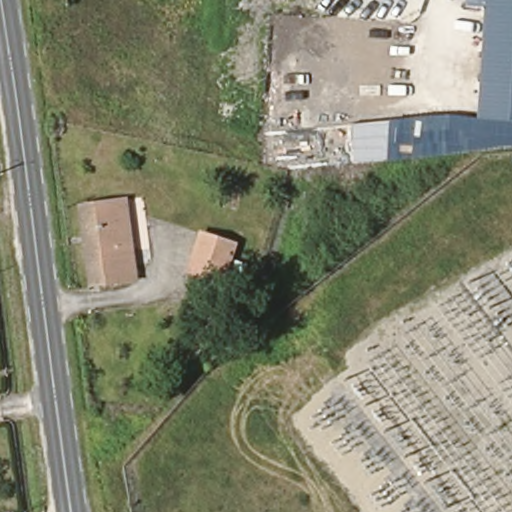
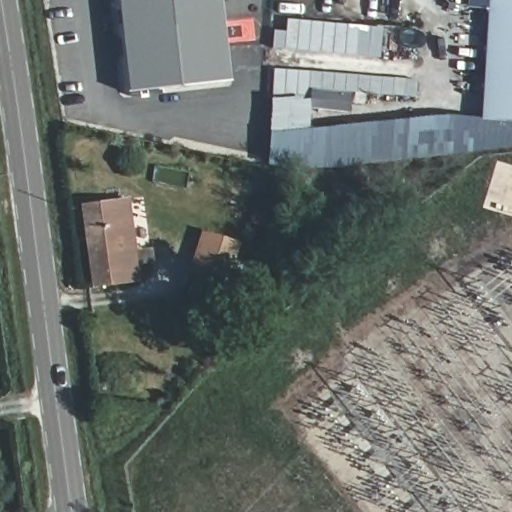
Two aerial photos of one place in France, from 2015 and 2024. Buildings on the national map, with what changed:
new [(114,0),(218,0),(227,80),(125,91),(114,0)]
unchanged [(389,160),(352,164),(350,125),(388,121),(449,114),(477,117),(486,8),(465,7),(465,0),(512,0),(512,147),(389,160)]
new [(284,31),(285,19),(381,27),(378,59),(269,48),(272,30),(284,31)]
new [(268,98),(272,69),(415,80),(413,98),(350,93),(347,113),(307,108),(306,129),(267,133),(268,98)]
new [(352,164),(297,169),(265,164),(267,133),(350,125),(352,164)]
demolished [(140,163),(97,155),(101,134),(144,144),(140,163)]
unchanged [(90,282),(82,209),(122,205),(131,275),(90,282)]
unchanged [(193,275),(206,238),(236,247),(222,285),(193,275)]

